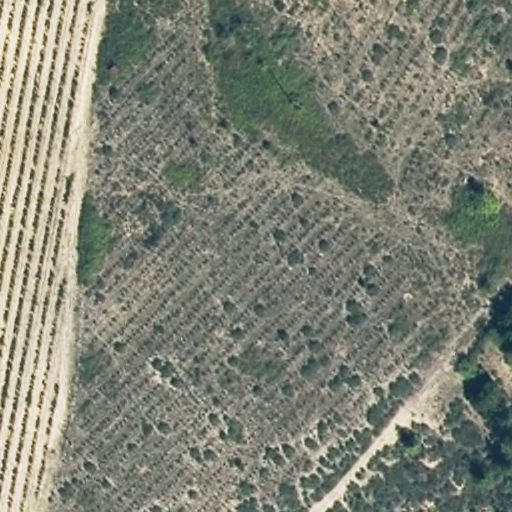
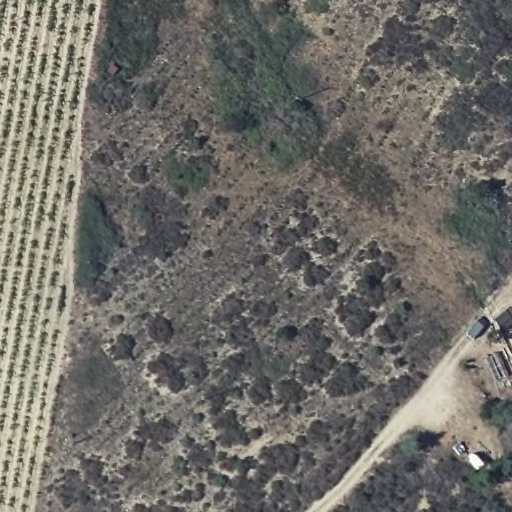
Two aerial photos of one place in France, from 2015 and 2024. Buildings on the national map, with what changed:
unchanged [(512,308),(508,302),(512,300),(512,308)]

